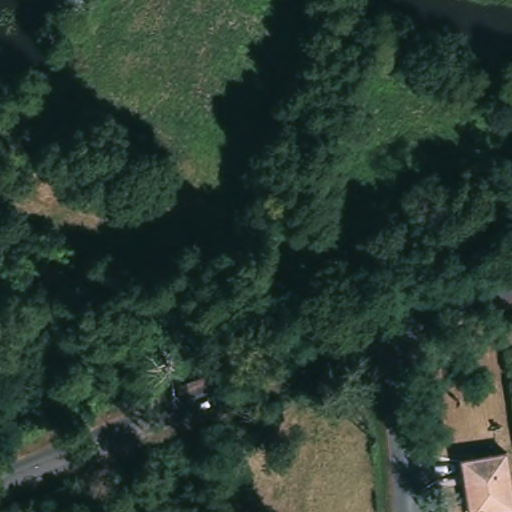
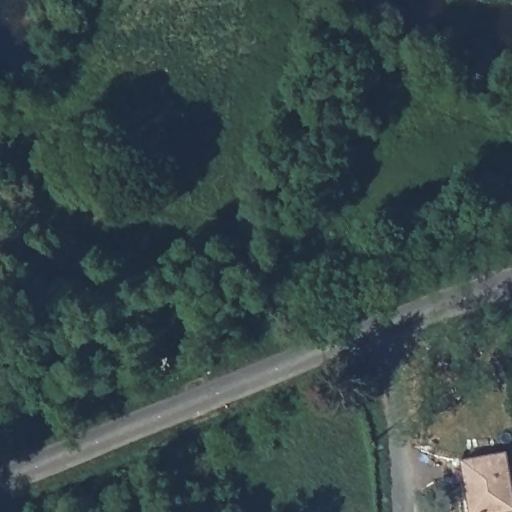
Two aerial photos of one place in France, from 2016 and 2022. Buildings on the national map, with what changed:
unchanged [(469,512),(467,453),(512,451),(512,511),(502,512),(469,512)]

